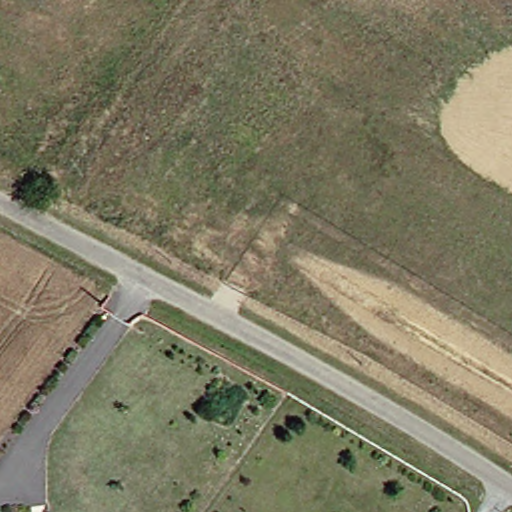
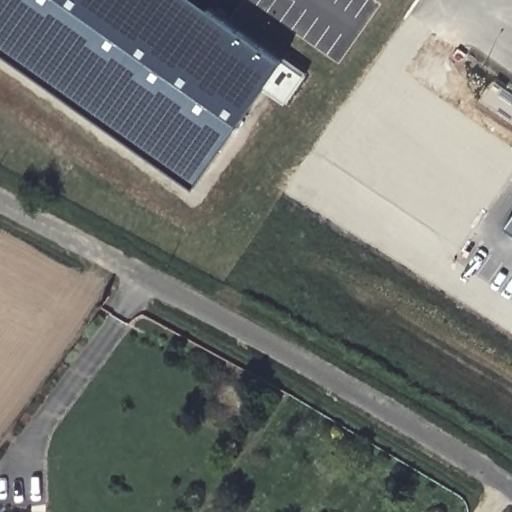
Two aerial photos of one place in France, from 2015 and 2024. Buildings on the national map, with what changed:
new [(265,86),(194,187),(0,50),(0,0),(200,0),(284,59),(305,75),(286,103),(265,86)]
new [(503,225),(512,212),(512,231),(503,225)]

